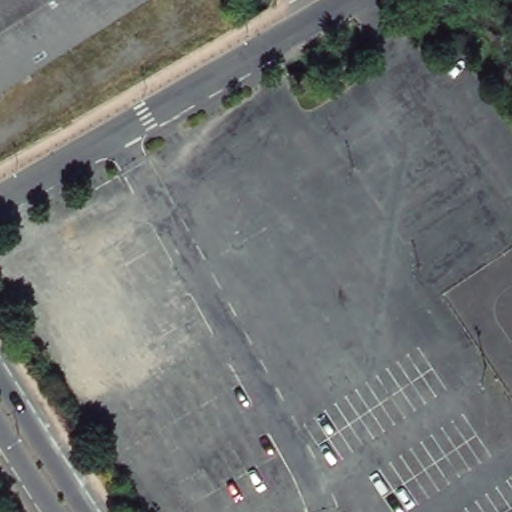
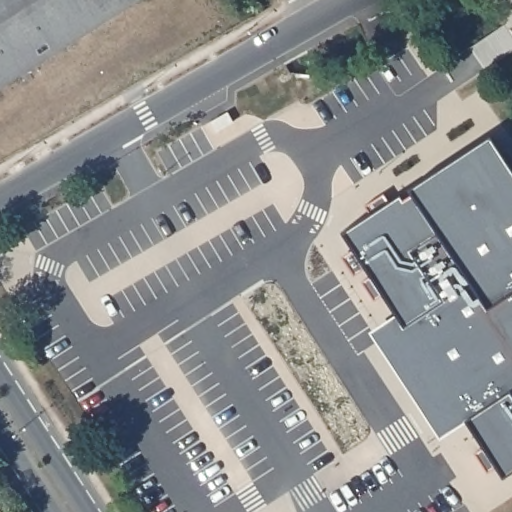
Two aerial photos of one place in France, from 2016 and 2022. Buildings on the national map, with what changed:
unchanged [(0,0),(134,0),(0,85),(0,0)]
new [(512,175),(512,480),(503,486),(345,238),(493,145),(512,175)]

